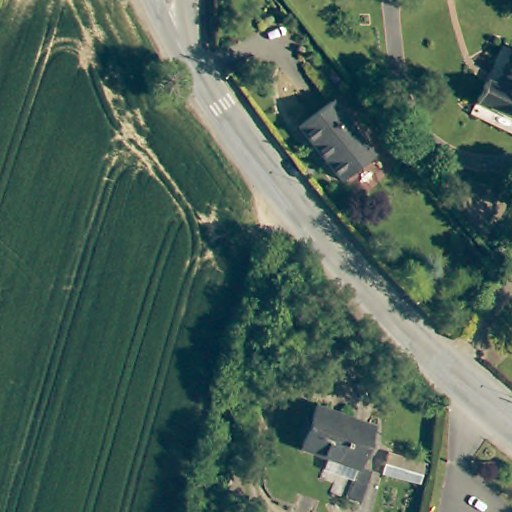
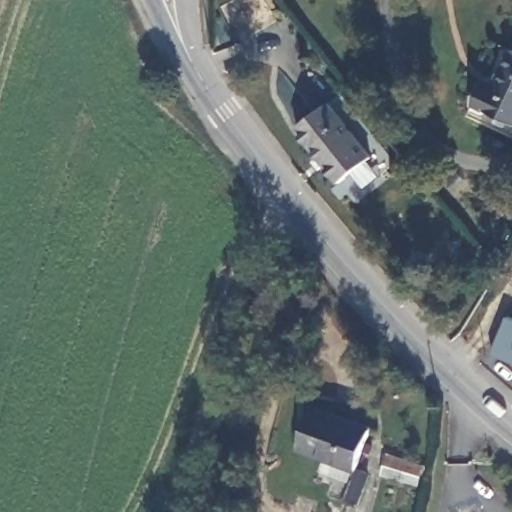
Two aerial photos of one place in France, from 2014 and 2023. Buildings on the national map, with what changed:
unchanged [(470,112),(487,78),(499,83),(512,57),(512,130),(470,112)]
unchanged [(375,158),(343,182),(301,130),(332,105),(375,158)]
new [(493,353),(508,315),(512,317),(512,361),(493,353)]
unchanged [(369,425),(358,467),(300,450),(313,407),(369,425)]

